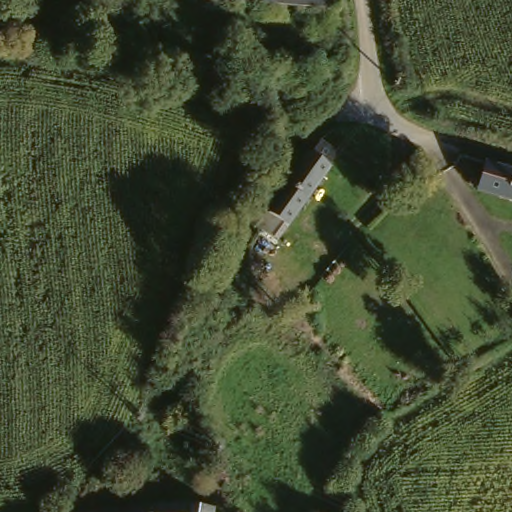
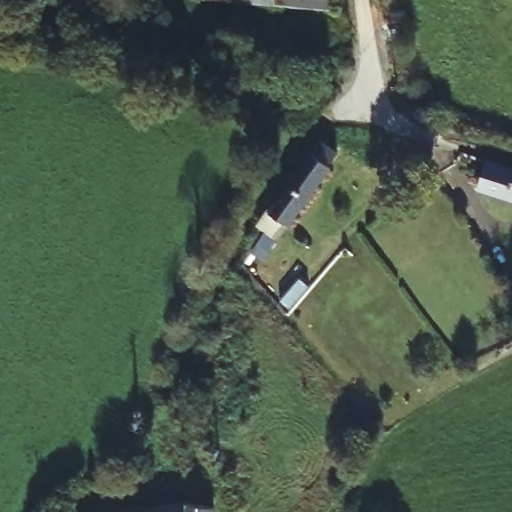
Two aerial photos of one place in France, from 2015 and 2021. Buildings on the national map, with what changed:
unchanged [(333,0),(333,12),(336,14),(336,39),(322,38),(321,12),(196,3),(197,0),(333,0)]
unchanged [(136,62),(109,57),(114,15),(139,18),(136,62)]
unchanged [(286,43),(320,85),(274,126),(269,119),(259,105),(240,80),(286,43)]
unchanged [(288,236),(269,229),(301,160),(321,172),(288,236)]
unchanged [(473,194),(477,168),(512,181),(512,209),(473,194)]
unchanged [(214,512),(153,512),(153,508),(193,503),(214,507),(214,512)]
unchanged [(153,508),(153,512),(117,512),(153,508)]

